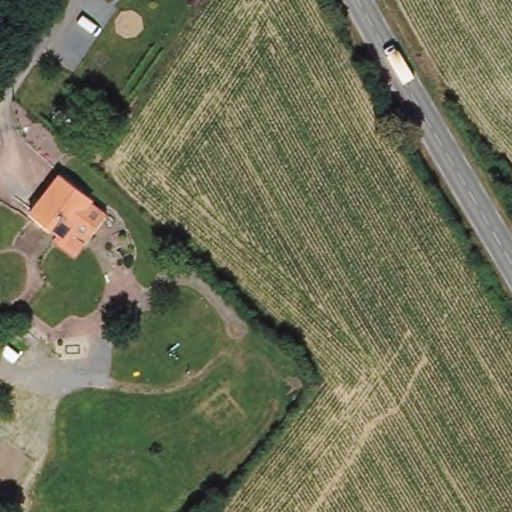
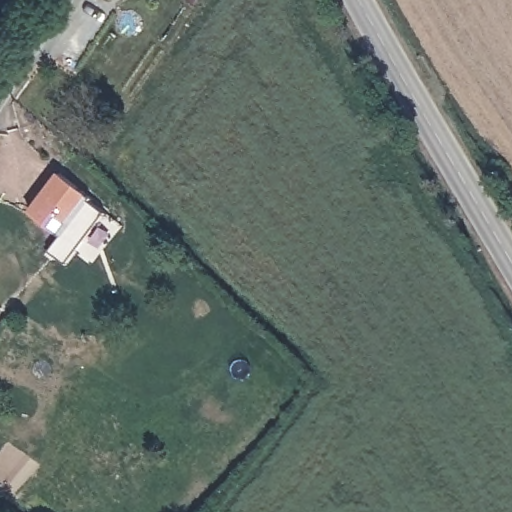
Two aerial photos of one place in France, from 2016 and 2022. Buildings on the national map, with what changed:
unchanged [(58,176),(91,201),(88,204),(104,215),(69,259),(53,245),(58,240),(27,216),(58,176)]

